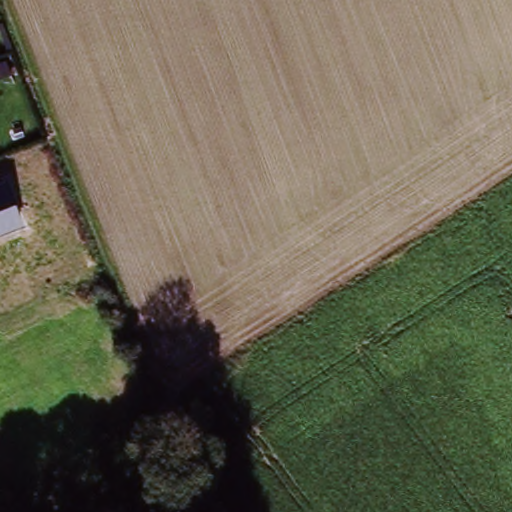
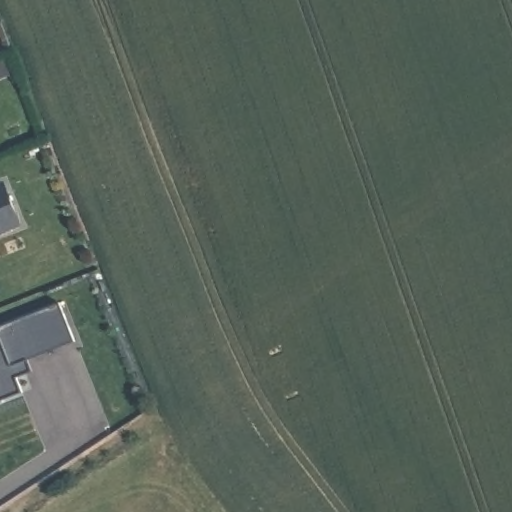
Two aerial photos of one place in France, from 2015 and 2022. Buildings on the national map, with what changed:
unchanged [(5,182),(21,225),(0,233),(0,184),(5,182)]
new [(77,341),(28,359),(31,371),(15,377),(21,392),(0,400),(0,327),(61,300),(77,341)]

